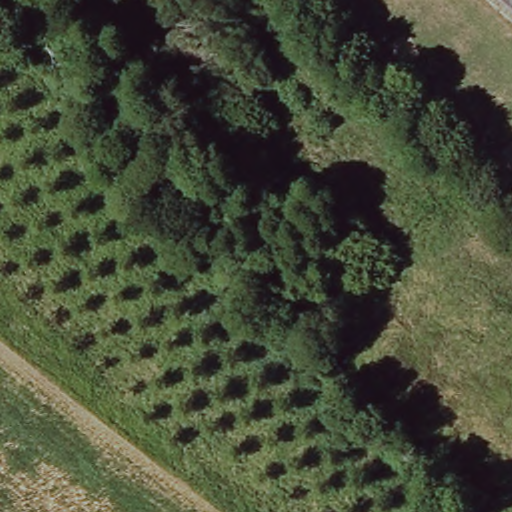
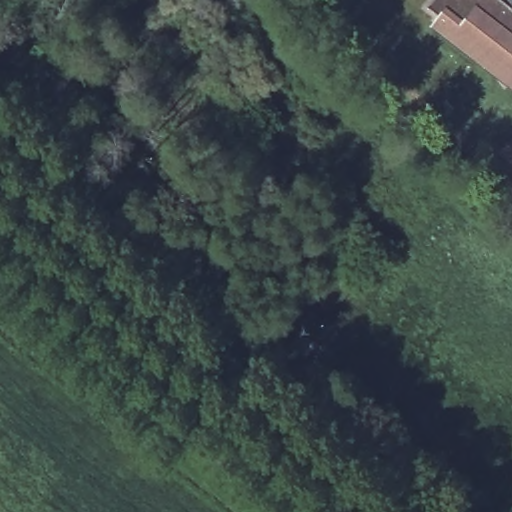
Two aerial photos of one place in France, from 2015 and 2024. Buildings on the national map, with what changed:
new [(429,5),(432,0),(501,0),(512,9),(512,87),(432,25),(440,14),(429,5)]

